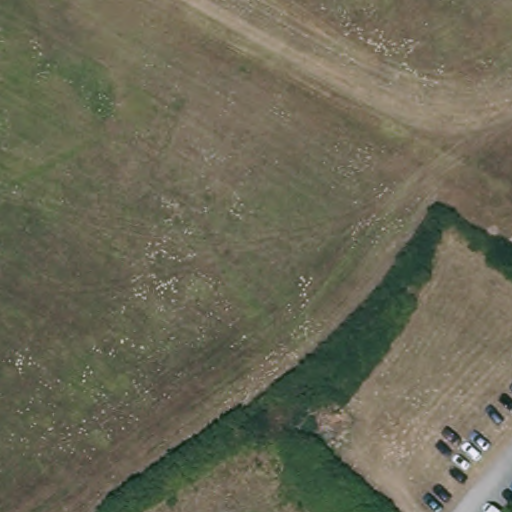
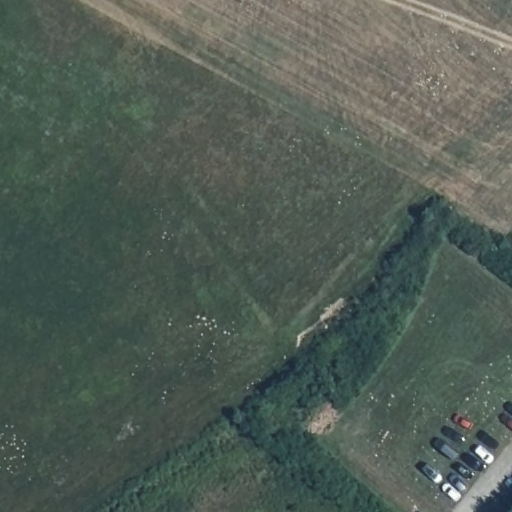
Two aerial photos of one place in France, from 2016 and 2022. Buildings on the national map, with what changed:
[]

